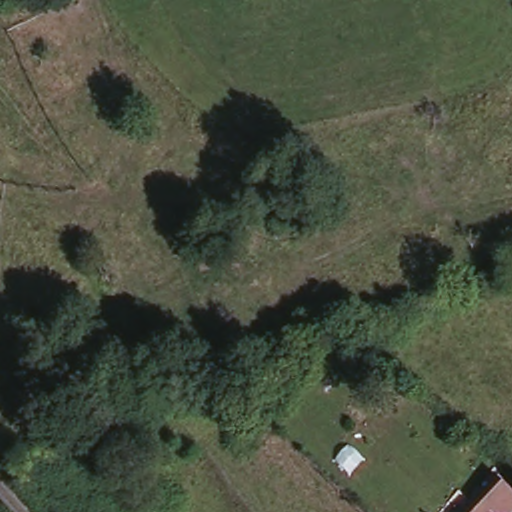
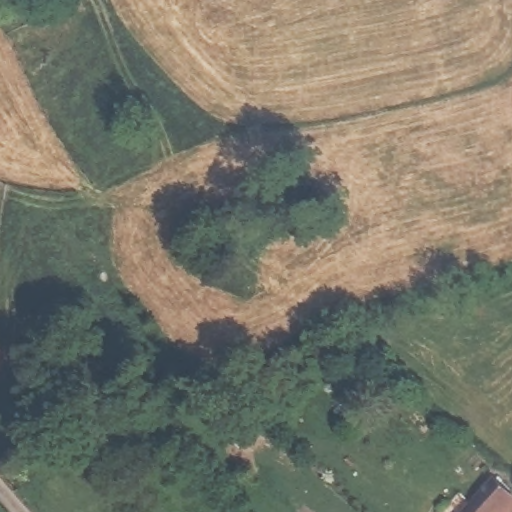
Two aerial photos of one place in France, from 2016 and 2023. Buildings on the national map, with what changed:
unchanged [(487,479),(512,501),(503,512),(491,512),(486,508),(482,512),(456,512),(487,479)]

